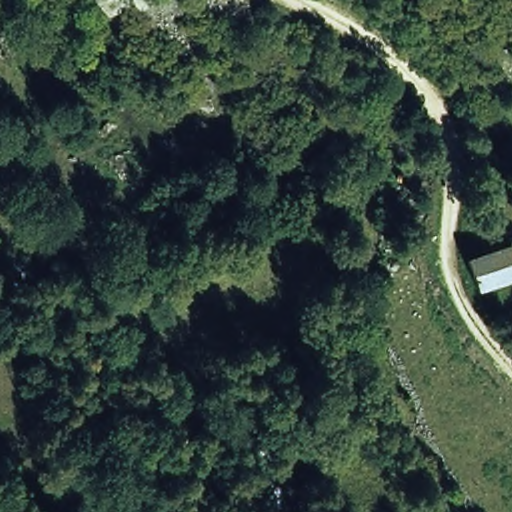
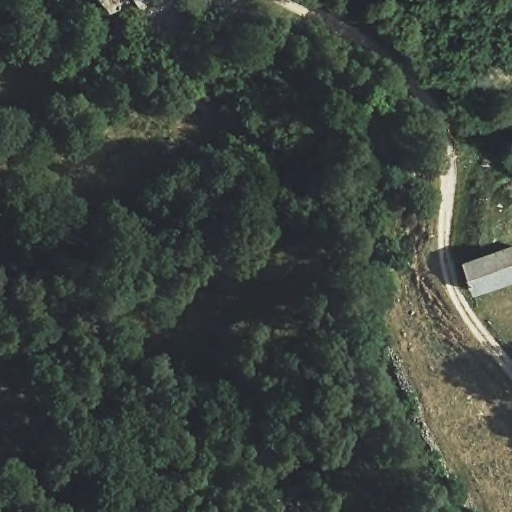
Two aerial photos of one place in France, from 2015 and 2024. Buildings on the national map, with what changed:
unchanged [(512,246),(512,280),(475,294),(464,260),(512,246)]

